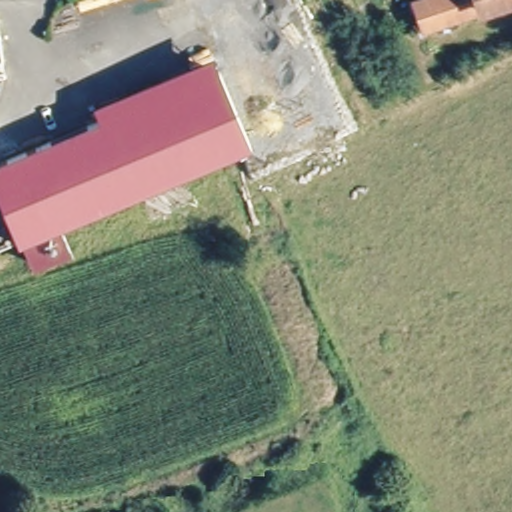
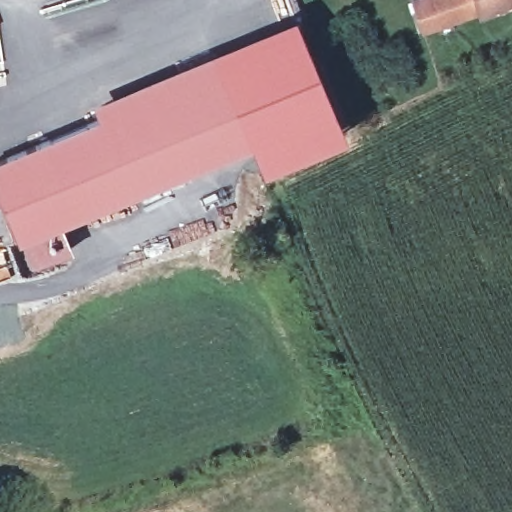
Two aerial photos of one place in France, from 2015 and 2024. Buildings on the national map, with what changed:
unchanged [(423,29),(415,0),(512,0),(512,1),(483,9),(423,29)]
new [(261,169),(246,139),(212,54),(294,17),(343,133),(261,169)]
unchanged [(0,160),(98,118),(93,105),(212,54),(246,139),(199,157),(188,163),(21,229),(0,181),(0,160)]

